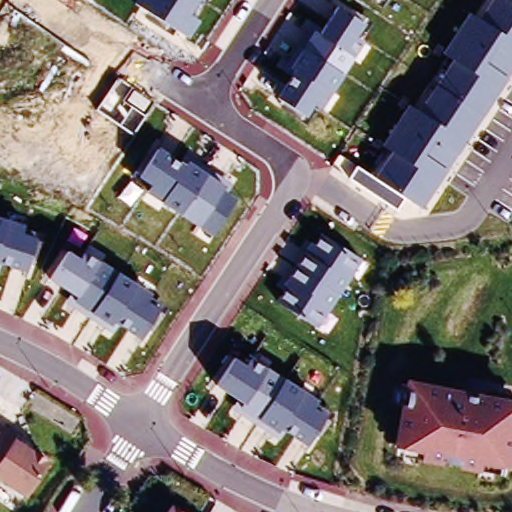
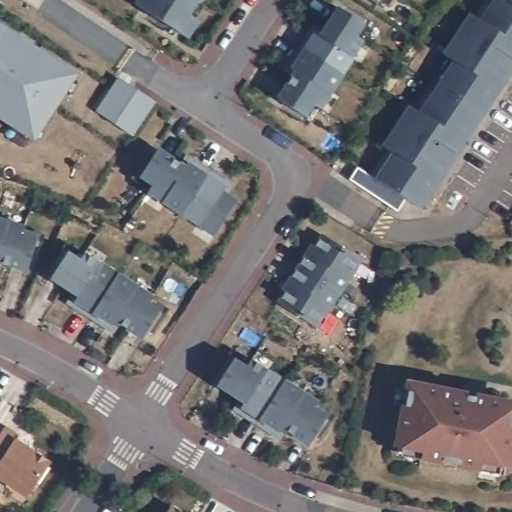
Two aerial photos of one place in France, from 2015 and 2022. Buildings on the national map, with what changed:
unchanged [(192,14),(199,21),(187,37),(138,0),(202,0),(192,14)]
unchanged [(405,200),(399,212),(350,179),(357,165),(377,175),(392,151),(382,143),(409,104),(417,111),(452,59),(444,52),(469,12),(477,18),(489,0),(512,0),(512,74),(424,211),(405,200)]
unchanged [(380,1),(378,0),(382,0),(380,1)]
unchanged [(365,24),(356,39),(363,44),(322,110),(313,104),(305,115),(278,96),(294,69),(290,67),(314,31),(319,34),(337,10),(365,24)]
new [(0,120),(0,25),(78,74),(34,142),(0,120)]
new [(132,135),(97,110),(119,77),(156,102),(132,135)]
unchanged [(179,161),(182,157),(225,185),(222,189),(237,199),(215,234),(147,191),(152,186),(140,176),(160,147),(179,161)]
unchanged [(25,224),(23,231),(37,236),(26,272),(0,262),(0,217),(25,224)]
unchanged [(362,260),(317,327),(276,301),(320,235),(362,260)]
unchanged [(79,257),(85,249),(152,291),(149,300),(160,308),(140,338),(116,321),(112,327),(72,301),(77,296),(51,278),(69,251),(79,257)]
unchanged [(250,368),(256,361),(319,398),(314,406),(330,416),(309,446),(281,427),(277,434),(238,410),(244,405),(215,386),(234,357),(250,368)]
unchanged [(512,475),(485,470),(482,476),(458,472),(460,465),(441,461),(440,468),(420,464),(422,458),(398,454),(409,376),(512,398),(512,475)]
unchanged [(5,424),(20,434),(17,439),(52,461),(28,497),(0,480),(0,432),(5,424)]
unchanged [(184,512),(167,512),(172,504),(184,512)]

